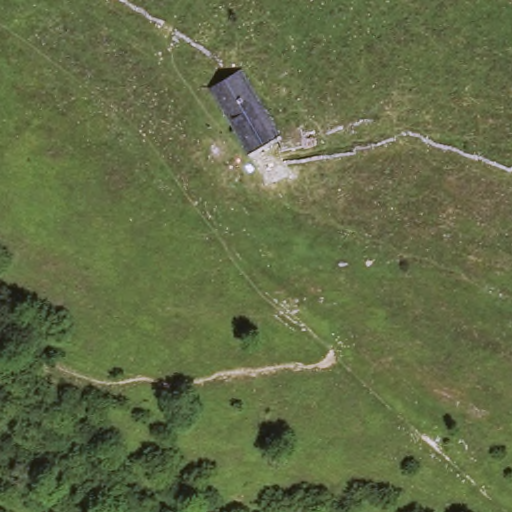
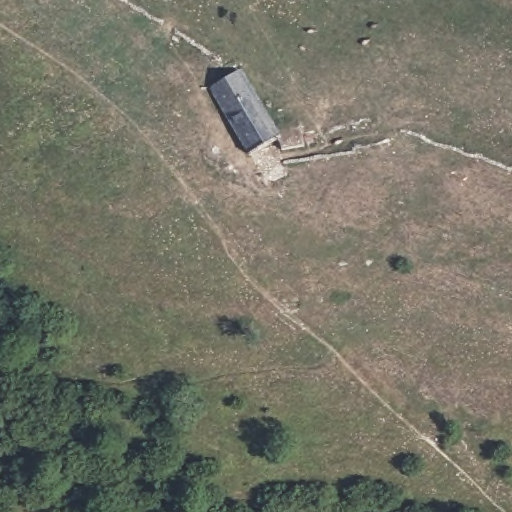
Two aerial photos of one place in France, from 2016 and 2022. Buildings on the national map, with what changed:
unchanged [(206,86),(244,64),(289,135),(245,154),(206,86)]

